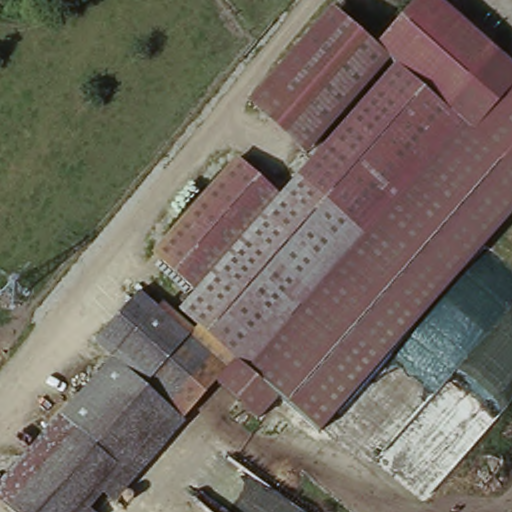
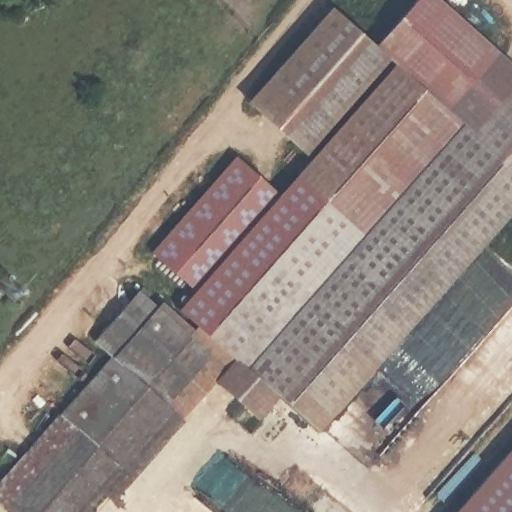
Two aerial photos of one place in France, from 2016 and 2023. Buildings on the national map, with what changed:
unchanged [(112,358),(95,342),(144,288),(178,315),(198,291),(152,254),(237,160),(281,195),(309,164),(395,68),(374,50),(420,0),(436,0),(501,61),(455,120),(468,129),(249,374),(236,363),(109,512),(10,512),(0,504),(0,482),(112,358)]
unchanged [(245,106),(328,12),(374,50),(395,68),(309,164),(245,106)]
unchanged [(512,213),(321,429),(283,395),(260,417),(220,382),(236,363),(249,374),(468,129),(455,120),(501,61),(512,69),(512,213)]
new [(512,512),(454,512),(512,446),(512,512)]

